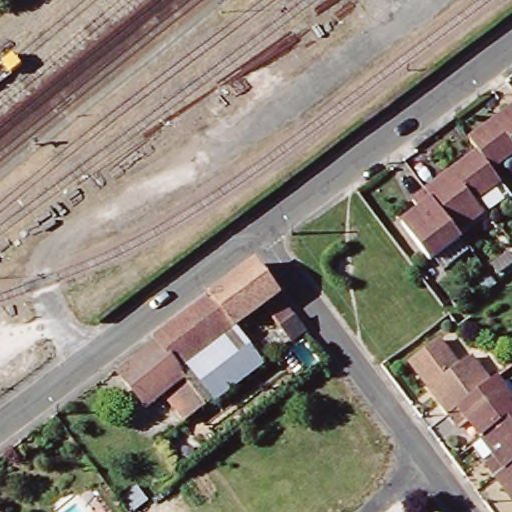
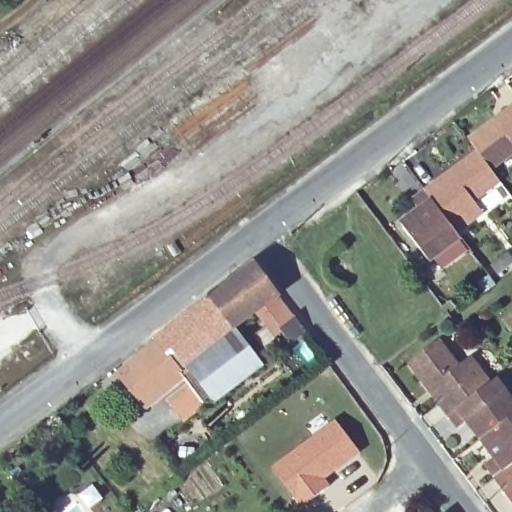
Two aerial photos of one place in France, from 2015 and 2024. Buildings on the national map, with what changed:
unchanged [(490,164),(485,157),(477,147),(468,136),(512,103),(512,148),(490,164)]
unchanged [(485,157),(490,164),(499,176),(472,196),(481,208),(455,228),(425,187),(477,147),(485,157)]
unchanged [(418,206),(412,197),(425,187),(455,228),(460,233),(458,234),(467,247),(442,265),(433,253),(428,257),(401,220),(418,206)]
unchanged [(167,403),(187,387),(177,373),(152,339),(150,336),(206,294),(205,292),(249,260),(272,291),(228,323),(257,358),(205,398),(210,405),(203,409),(199,403),(179,419),(167,403)]
unchanged [(290,342),(281,330),(295,320),(304,331),(290,342)]
unchanged [(409,358),(438,336),(457,362),(470,353),(490,380),(455,405),(448,410),(409,358)]
unchanged [(140,403),(114,370),(152,339),(177,373),(140,403)]
unchanged [(492,425),(481,434),(467,417),(458,424),(448,410),(455,405),(490,380),(495,376),(512,399),(512,411),(492,425)]
unchanged [(496,472),(486,459),(494,452),(481,434),(492,425),(512,411),(512,460),(496,472)]
new [(335,419),(361,453),(327,479),(330,485),(302,507),(271,466),(335,419)]
unchanged [(496,472),(512,460),(512,494),(496,472)]

